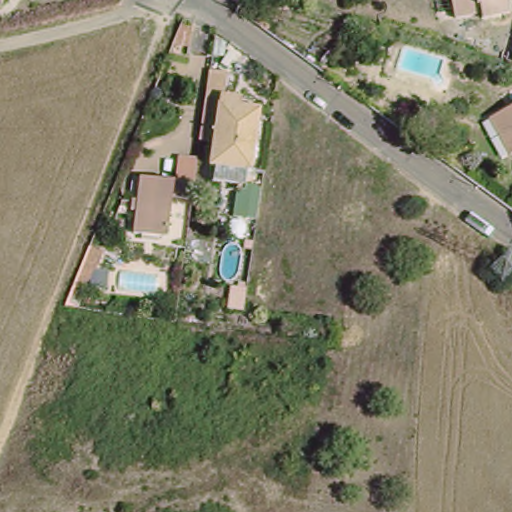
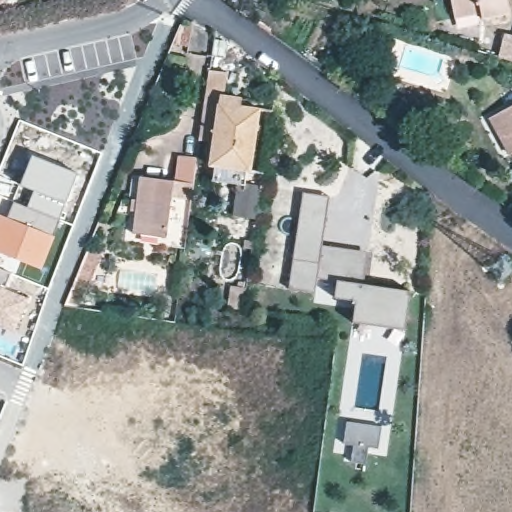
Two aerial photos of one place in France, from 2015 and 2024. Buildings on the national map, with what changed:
unchanged [(506,0),(510,19),(481,24),(480,18),(455,23),(450,0),(506,0)]
new [(506,36),(512,38),(512,64),(500,60),(506,36)]
unchanged [(212,178),(214,163),(210,162),(213,138),(201,135),(210,68),(226,70),(225,92),(240,94),(240,103),(260,105),(251,168),(247,168),(245,182),(212,178)]
unchanged [(485,120),(512,106),(512,151),(505,155),(495,136),(485,120)]
new [(12,201),(26,206),(32,190),(20,184),(31,154),(78,173),(54,235),(6,217),(12,201)]
unchanged [(145,179),(199,185),(197,201),(175,199),(170,240),(138,236),(145,179)]
new [(337,297),(339,279),(320,278),(318,292),(293,289),(300,224),(303,193),(328,195),(325,226),(322,247),(350,249),(369,252),(366,281),(413,286),(410,318),(410,325),(356,320),(357,313),(359,299),(337,297)]
new [(6,217),(54,235),(41,269),(0,254),(0,214),(6,217)]
unchanged [(103,254),(90,289),(75,286),(91,248),(103,254)]
new [(10,272),(4,287),(29,297),(15,332),(0,326),(0,267),(10,272)]

